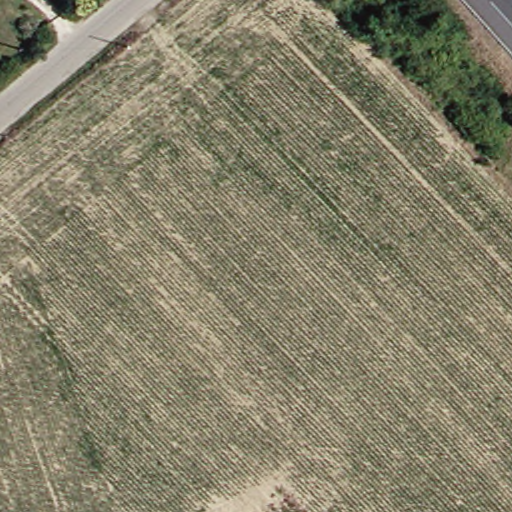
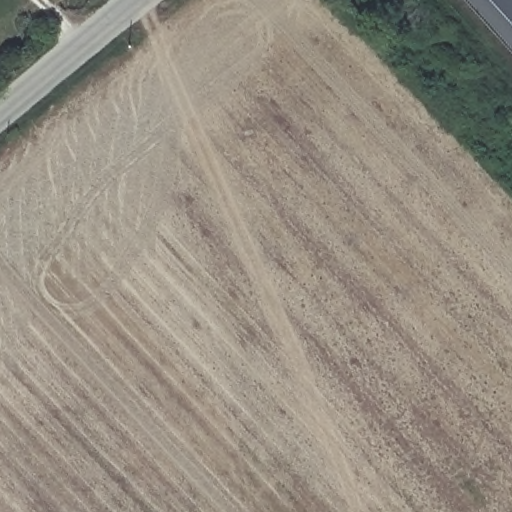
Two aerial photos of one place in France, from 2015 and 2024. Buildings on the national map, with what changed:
[]

